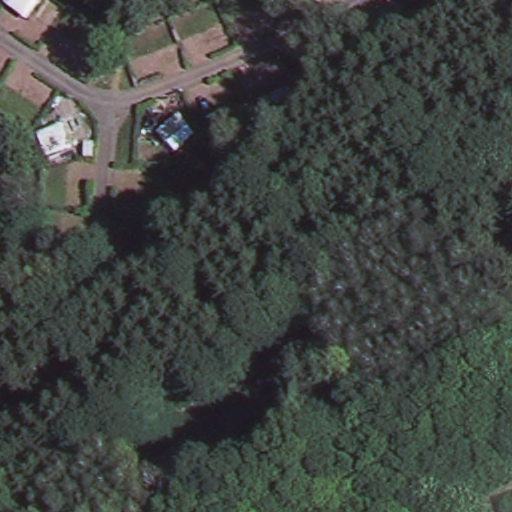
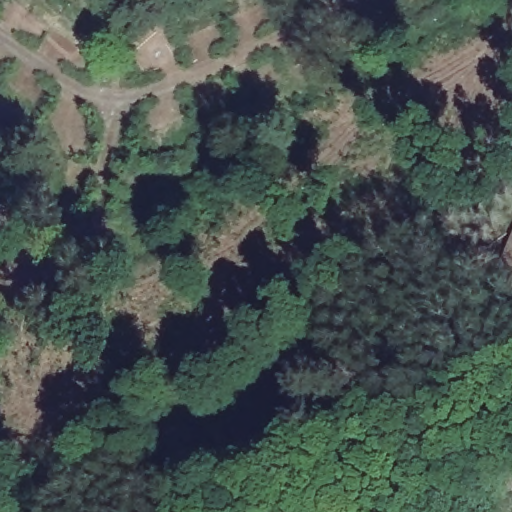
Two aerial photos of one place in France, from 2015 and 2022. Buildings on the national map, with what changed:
unchanged [(504,265),(489,258),(504,224),(512,227),(512,268),(504,265)]

